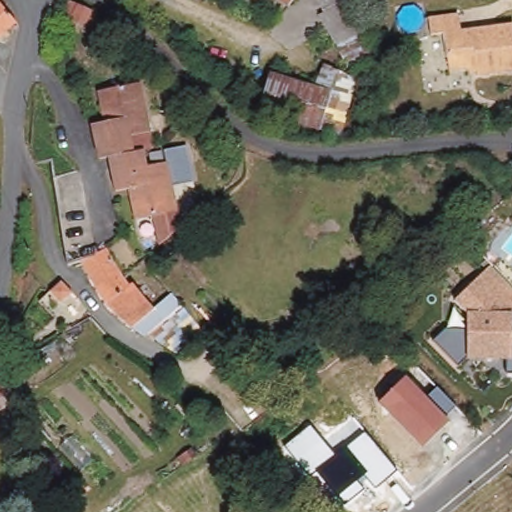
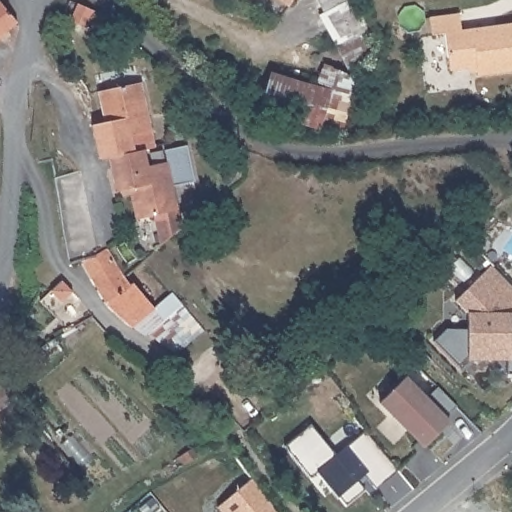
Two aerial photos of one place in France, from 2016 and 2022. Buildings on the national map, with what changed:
unchanged [(289,6),(281,0),(294,0),(289,6)]
unchanged [(342,51),(337,46),(319,15),(324,12),(319,0),(356,0),(369,32),(370,35),(372,43),(342,51)]
unchanged [(0,36),(0,2),(17,22),(0,36)]
unchanged [(476,67),(450,70),(444,34),(431,35),(429,18),(459,14),(462,30),(512,24),(512,71),(477,76),(476,67)]
unchanged [(342,136),(259,111),(271,72),(316,85),(325,64),(357,79),(342,136)]
unchanged [(91,126),(105,122),(98,92),(141,82),(151,131),(154,144),(144,150),(139,151),(135,152),(109,158),(99,160),(91,126)]
unchanged [(148,166),(168,162),(166,150),(188,145),(196,181),(173,186),(179,211),(182,227),(175,234),(173,235),(161,246),(155,216),(136,220),(128,190),(117,193),(109,158),(135,152),(139,151),(144,150),(148,166)]
unchanged [(88,248),(74,254),(62,258),(49,173),(70,166),(75,165),(88,248)]
unchanged [(116,267),(120,273),(125,280),(101,299),(100,299),(74,254),(88,248),(101,241),(116,267)]
unchanged [(512,328),(510,330),(510,341),(512,341),(512,374),(504,374),(504,357),(484,357),(484,347),(466,347),(466,357),(456,367),(431,341),(444,329),(465,329),(465,313),(452,300),(489,265),(489,264),(512,287),(512,328)]
unchanged [(172,349),(151,336),(145,329),(141,332),(127,323),(126,323),(101,299),(125,280),(129,277),(139,290),(149,303),(167,288),(177,300),(199,325),(172,349)]
unchanged [(56,286),(67,297),(56,309),(45,297),(56,286)]
unchanged [(379,403),(406,377),(425,398),(437,387),(455,408),(444,419),(448,422),(421,448),(379,403)]
unchanged [(0,410),(0,383),(13,401),(0,410)]
unchanged [(284,447),(310,427),(335,457),(365,433),(396,472),(375,488),(365,475),(356,481),(362,490),(343,503),(337,495),(334,497),(315,472),(309,477),(284,447)]
new [(252,478),(277,512),(222,512),(217,507),(252,478)]

